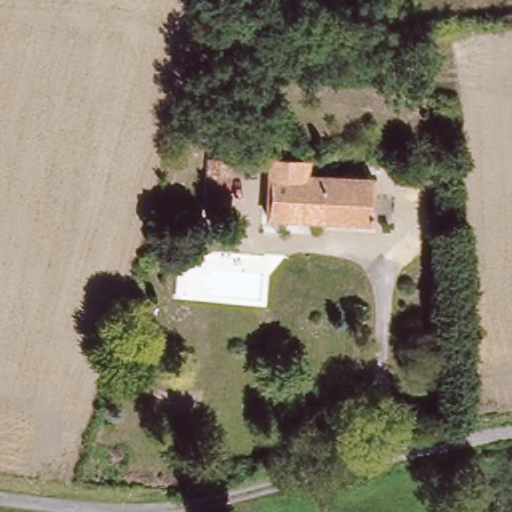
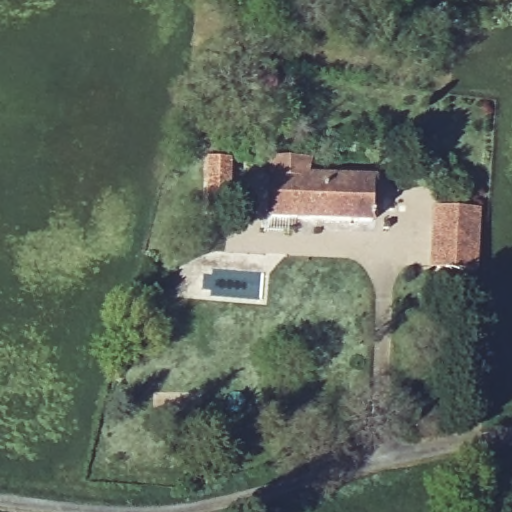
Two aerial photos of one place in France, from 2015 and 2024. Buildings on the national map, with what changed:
unchanged [(227,217),(202,216),(202,164),(227,164),(227,217)]
unchanged [(367,223),(267,222),(267,170),(305,170),(305,185),(367,186),(367,223)]
new [(433,207),(481,210),(476,272),(430,269),(433,207)]

